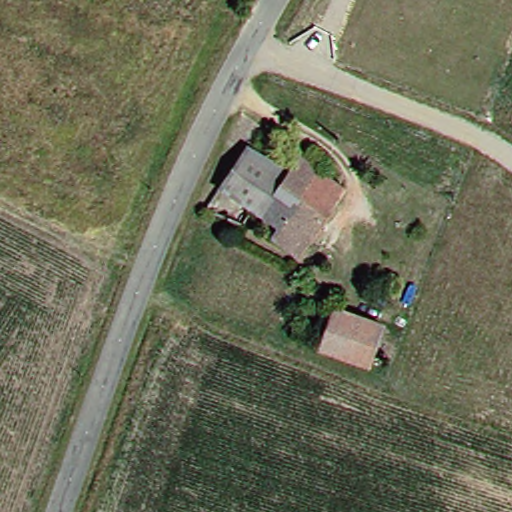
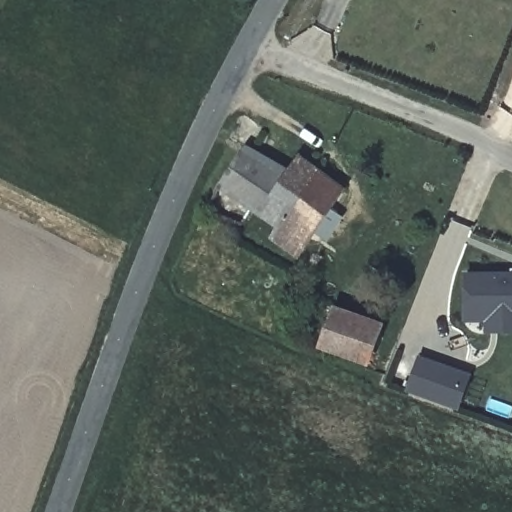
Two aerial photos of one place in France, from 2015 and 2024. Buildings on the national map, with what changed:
unchanged [(246,221),(211,207),(247,141),(292,168),(303,151),(311,156),(322,165),(298,206),(275,195),(268,206),(261,200),(246,221)]
unchanged [(275,195),(298,206),(322,165),(349,183),(301,252),(273,233),(284,217),(268,206),(275,195)]
new [(485,322),(465,322),(464,272),(512,272),(512,333),(485,333),(485,322)]
unchanged [(386,321),(370,361),(322,345),(338,306),(386,321)]
new [(408,392),(422,354),(473,372),(459,410),(408,392)]

